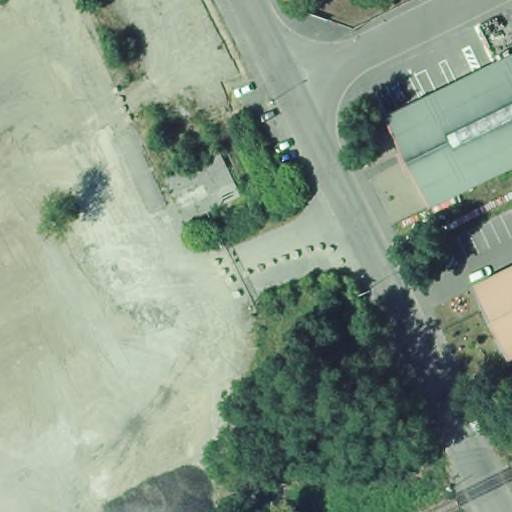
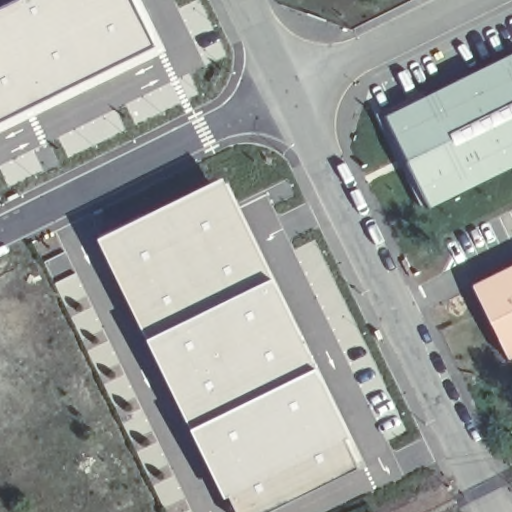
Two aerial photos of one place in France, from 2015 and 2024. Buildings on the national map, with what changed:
new [(132,0),(159,51),(0,129),(0,6),(12,0),(132,0)]
unchanged [(382,121),(512,60),(512,172),(427,212),(382,121)]
demolished [(43,512),(0,512),(0,142),(52,245),(63,269),(45,284),(55,307),(35,328),(62,375),(125,343),(177,449),(69,499),(43,512)]
new [(221,175),(366,467),(273,512),(235,512),(228,495),(220,499),(92,238),(221,175)]
unchanged [(507,359),(472,287),(512,267),(512,357),(507,359)]

